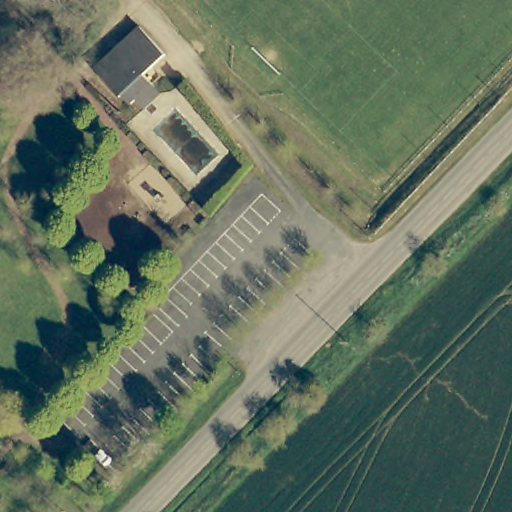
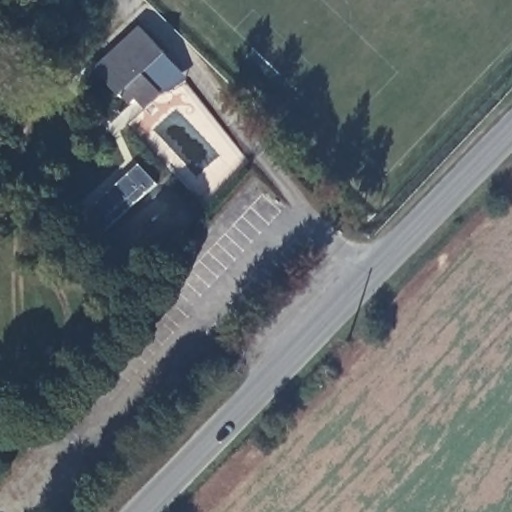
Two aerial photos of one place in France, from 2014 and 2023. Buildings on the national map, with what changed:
unchanged [(158,95),(141,110),(130,98),(123,103),(110,91),(90,69),(136,27),(161,55),(139,74),(149,84),(143,88),(150,87),(158,95)]
new [(158,183),(104,234),(86,215),(140,165),(158,183)]

